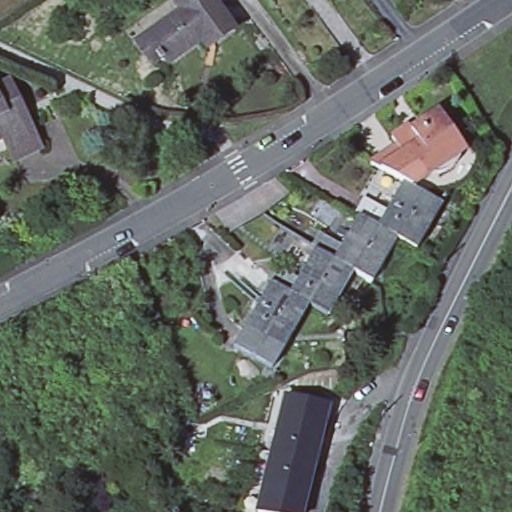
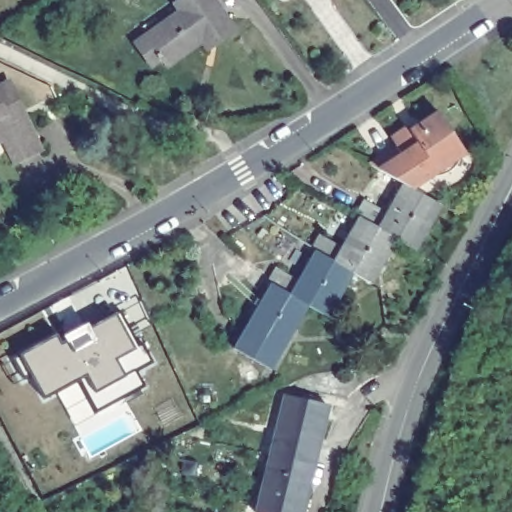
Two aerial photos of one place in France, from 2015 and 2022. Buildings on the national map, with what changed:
unchanged [(231,33),(210,48),(204,40),(164,69),(142,39),(176,14),(170,6),(179,0),(207,0),(231,33)]
unchanged [(5,135),(0,138),(0,83),(10,77),(23,102),(20,104),(27,120),(31,118),(32,121),(45,146),(17,160),(5,135)]
unchanged [(457,164),(449,172),(440,176),(436,171),(411,188),(403,184),(370,165),(397,147),(391,139),(409,127),(411,131),(418,127),(439,113),(460,144),(465,152),(461,155),(457,164)]
unchanged [(271,283),(267,281),(275,267),(298,280),(315,250),(311,248),(320,234),(342,247),(359,217),(355,215),(364,199),(387,212),(403,184),(411,188),(441,206),(415,251),(397,240),(371,284),(352,273),(327,317),(308,306),(271,370),(233,348),(271,283)]
new [(56,336),(61,345),(67,341),(65,337),(65,336),(68,340),(120,312),(141,301),(153,326),(133,336),(139,346),(142,345),(152,363),(136,372),(143,386),(96,412),(79,380),(44,399),(31,375),(25,379),(13,385),(2,365),(13,359),(56,336)]
unchanged [(286,395),(327,404),(312,464),(272,455),(286,395)]
unchanged [(312,464),(301,512),(258,512),(272,455),(312,464)]

